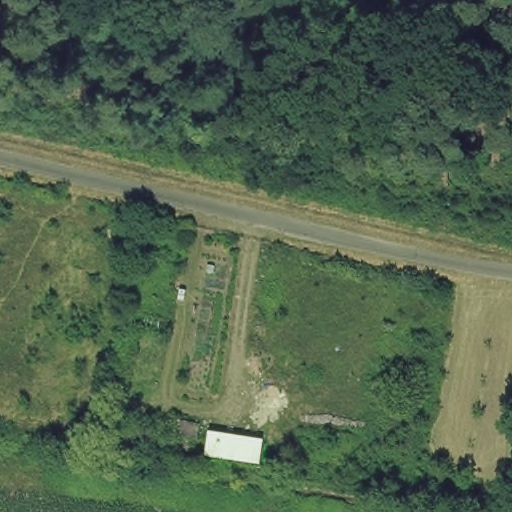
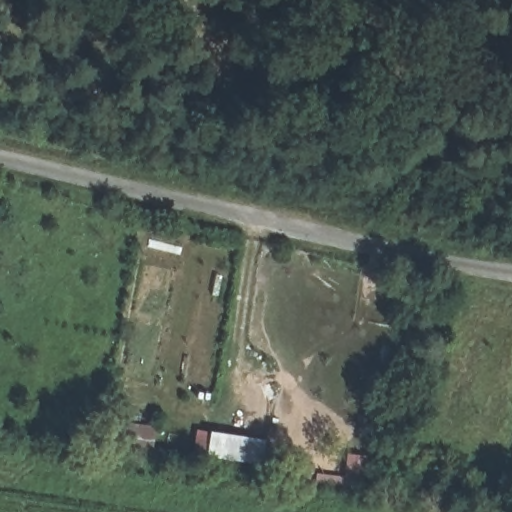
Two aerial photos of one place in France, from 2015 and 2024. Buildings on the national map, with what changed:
unchanged [(259,470),(199,460),(204,427),(262,437),(259,470)]

